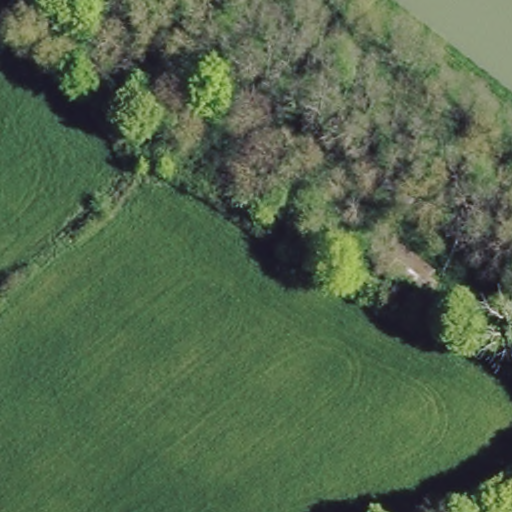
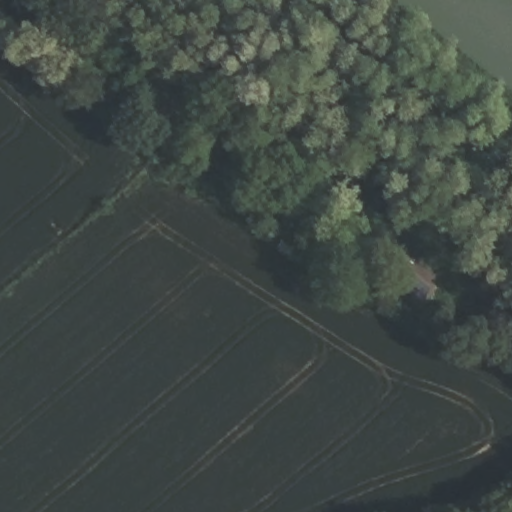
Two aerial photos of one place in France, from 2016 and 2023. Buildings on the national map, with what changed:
unchanged [(422,288),(412,299),(385,274),(395,263),(422,288)]

